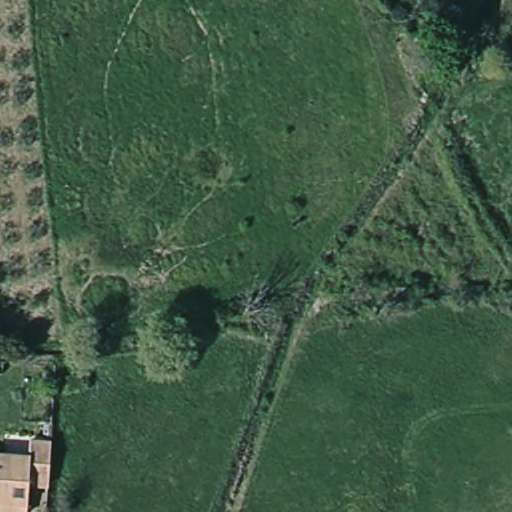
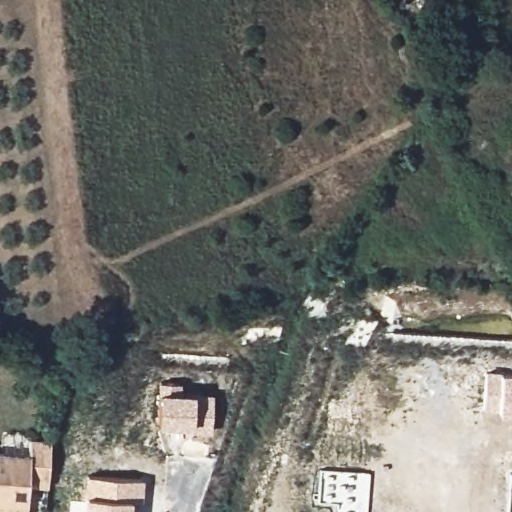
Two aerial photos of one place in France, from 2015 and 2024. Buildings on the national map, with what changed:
new [(484,406),(486,368),(500,370),(512,371),(512,412),(496,410),(484,406)]
new [(189,426),(157,423),(158,392),(157,381),(179,382),(178,392),(192,393),(212,394),(211,430),(189,426)]
unchanged [(54,483),(33,481),(31,496),(0,492),(0,454),(40,458),(42,445),(59,448),(54,483)]
new [(512,471),(512,512),(507,512),(510,471),(512,471)]
new [(130,512),(84,512),(85,496),(85,475),(143,479),(142,504),(130,498),(130,512)]

